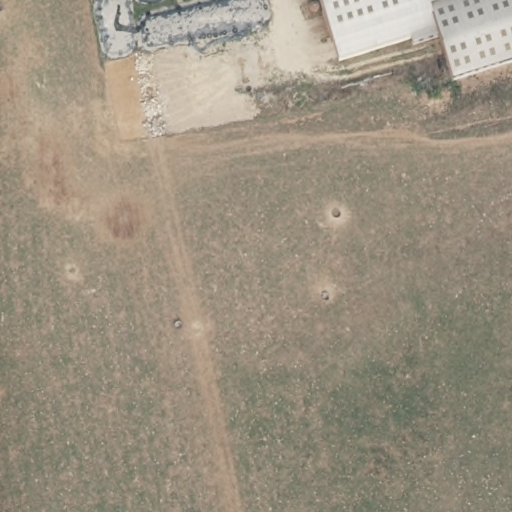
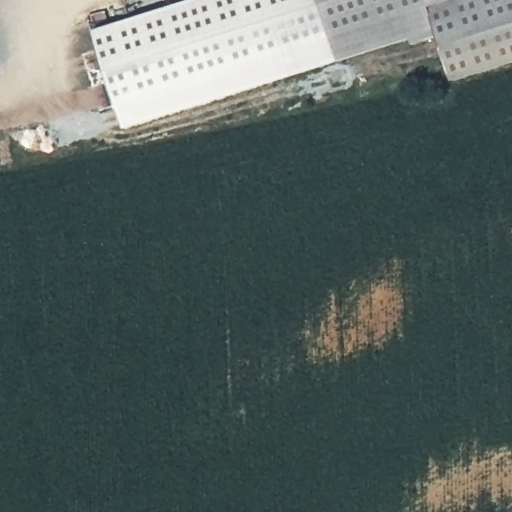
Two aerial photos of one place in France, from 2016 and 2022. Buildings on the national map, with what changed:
new [(194,0),(319,0),(338,63),(124,131),(92,31),(194,0)]
unchanged [(413,46),(411,40),(338,63),(319,0),(426,0),(439,39),(413,46)]
unchanged [(455,84),(425,0),(512,0),(512,63),(455,84)]

